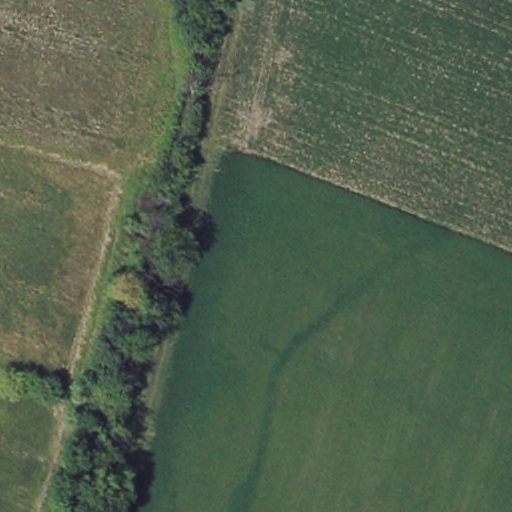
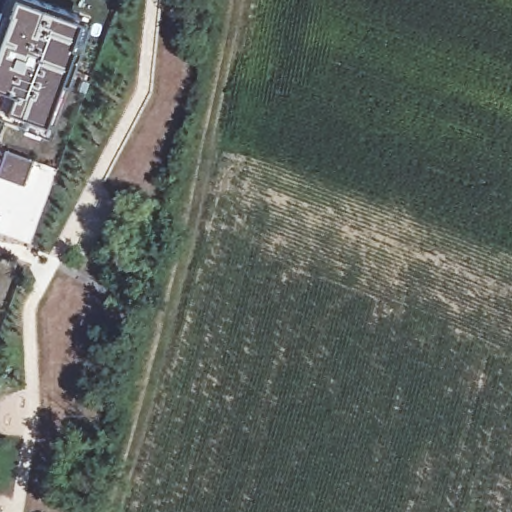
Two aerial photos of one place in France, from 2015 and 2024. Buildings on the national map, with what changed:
new [(1,0),(36,0),(86,19),(49,125),(37,121),(22,115),(22,124),(0,115),(0,2),(1,0)]

